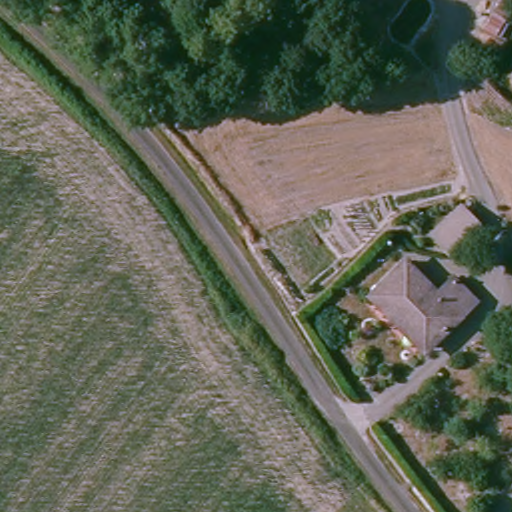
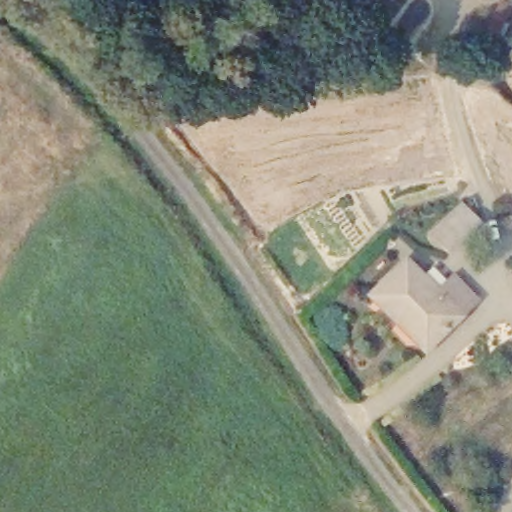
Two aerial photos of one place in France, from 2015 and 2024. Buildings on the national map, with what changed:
unchanged [(468,198),(489,219),(448,258),(429,238),(468,198)]
unchanged [(441,289),(458,273),(481,296),(436,339),(426,349),(395,316),(368,292),(407,254),(441,289)]

